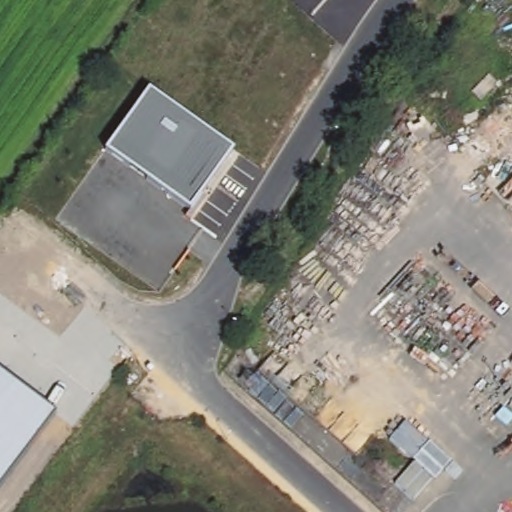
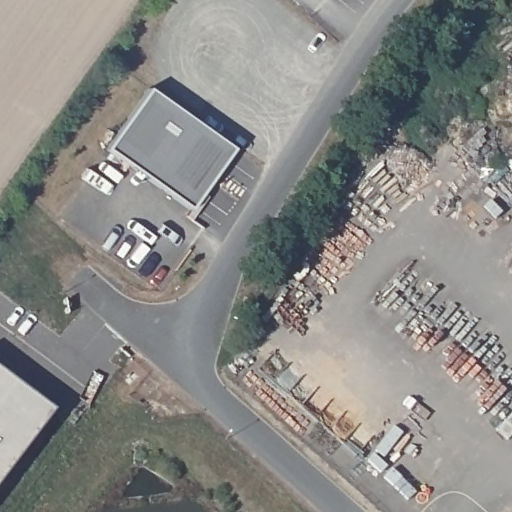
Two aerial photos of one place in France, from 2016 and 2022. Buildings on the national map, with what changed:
unchanged [(190,209),(106,150),(149,91),(232,149),(190,209)]
unchanged [(0,372),(54,413),(0,484),(0,372)]

